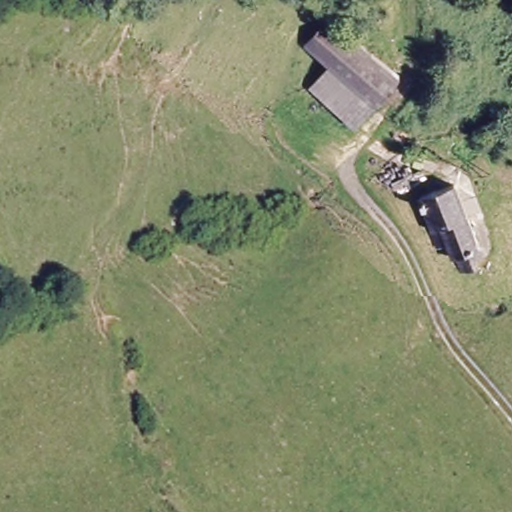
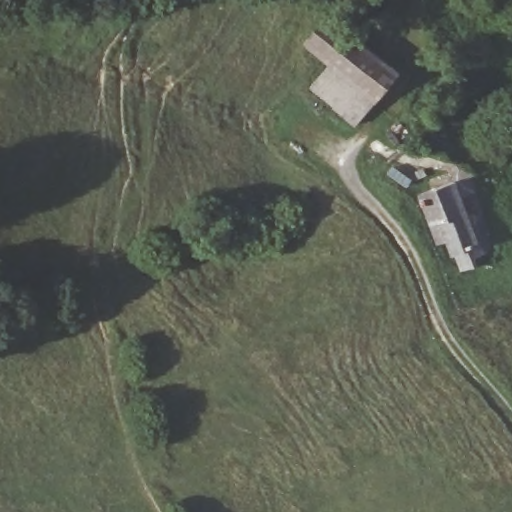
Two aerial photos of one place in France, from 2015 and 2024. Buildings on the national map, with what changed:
unchanged [(338,60),(314,36),(338,10),(347,17),(404,74),(375,100),(338,60)]
unchanged [(352,122),(313,85),(338,60),(375,100),(352,122)]
unchanged [(451,177),(477,239),(469,240),(477,260),(463,265),(458,252),(452,254),(444,235),(437,235),(416,190),(451,177)]

